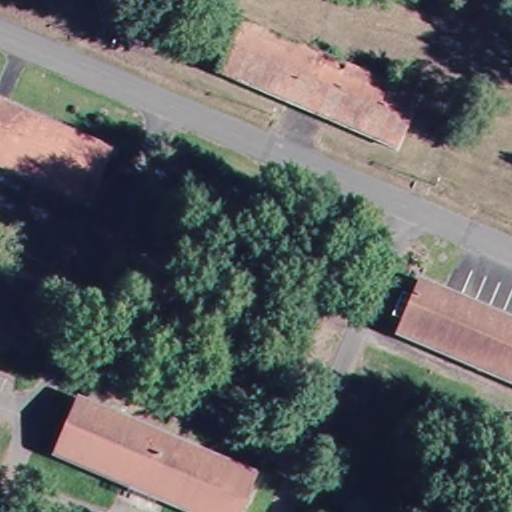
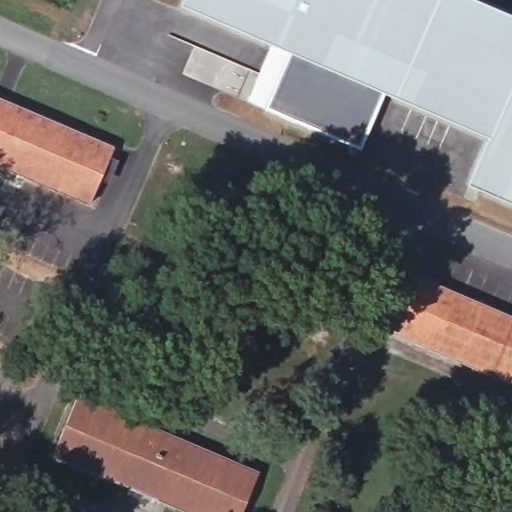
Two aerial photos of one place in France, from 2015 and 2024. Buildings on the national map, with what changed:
new [(380,96),(358,150),(245,101),(271,47),(178,7),(182,0),(464,0),(512,21),(512,207),(465,186),(485,141),(380,96)]
demolished [(213,73),(239,16),(419,95),(394,149),(213,73)]
unchanged [(0,166),(0,96),(112,145),(88,202),(0,166)]
unchanged [(418,273),(512,315),(512,383),(390,332),(418,273)]
unchanged [(184,512),(47,455),(78,392),(259,470),(241,512),(184,512)]

